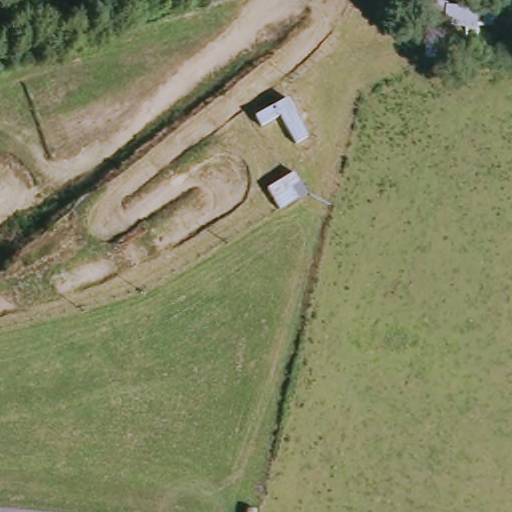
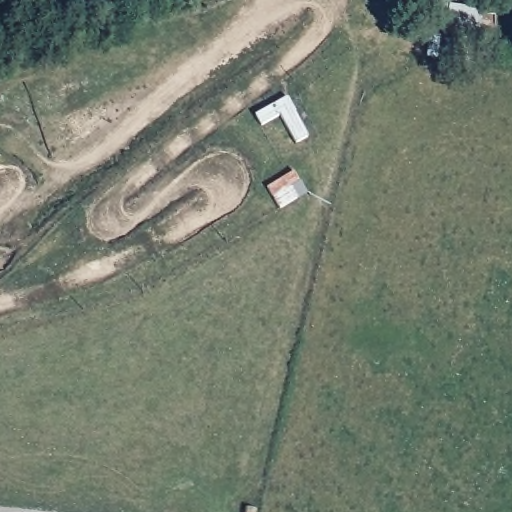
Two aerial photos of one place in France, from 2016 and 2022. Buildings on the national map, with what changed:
unchanged [(319,139),(304,146),(286,119),(269,129),(262,117),(291,99),(319,139)]
unchanged [(311,182),(298,190),(309,200),(286,212),(275,190),(304,174),(311,182)]

